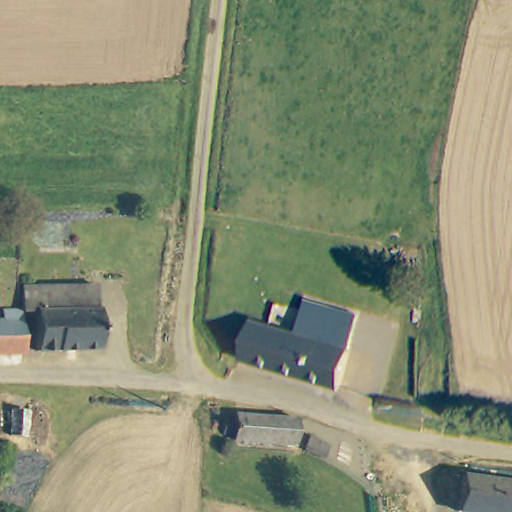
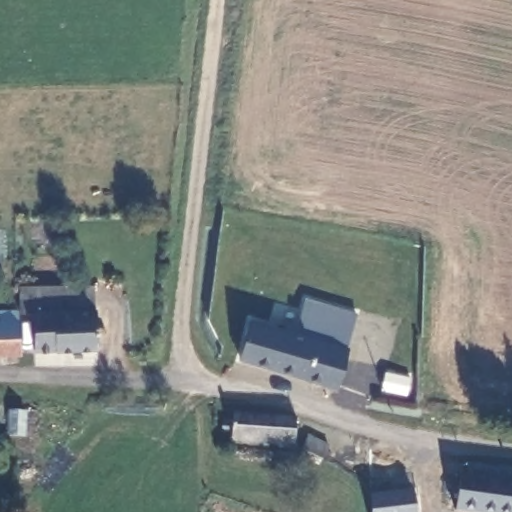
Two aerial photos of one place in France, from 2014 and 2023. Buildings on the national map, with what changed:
unchanged [(92,320),(102,320),(102,333),(93,333),(93,344),(33,347),(33,307),(17,307),(17,303),(17,281),(92,281),(92,320)]
unchanged [(236,360),(245,323),(292,335),(301,301),(352,314),(333,390),(238,363),(236,360)]
unchanged [(0,351),(0,303),(17,303),(17,307),(19,352),(3,351),(0,351)]
unchanged [(295,414),(295,420),(292,440),(227,434),(227,431),(217,430),(219,407),(295,414)]
unchanged [(7,410),(25,412),(22,436),(5,435),(7,410)]
unchanged [(325,441),(317,455),(298,444),(307,430),(325,441)]
unchanged [(0,468),(0,448),(5,449),(2,468),(0,468)]
unchanged [(456,475),(512,483),(512,512),(466,512),(451,510),(456,475)]
demolished [(410,484),(416,512),(371,512),(367,490),(410,484)]

